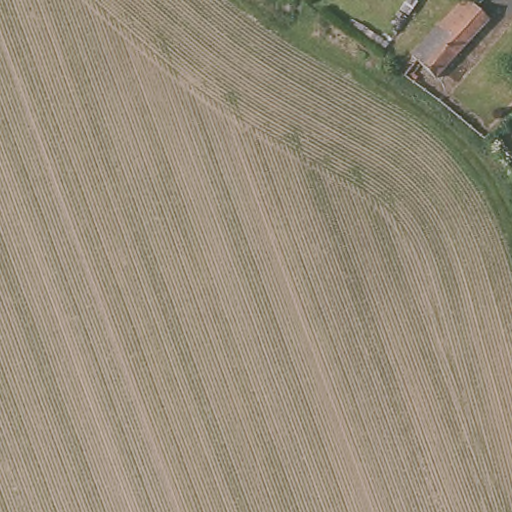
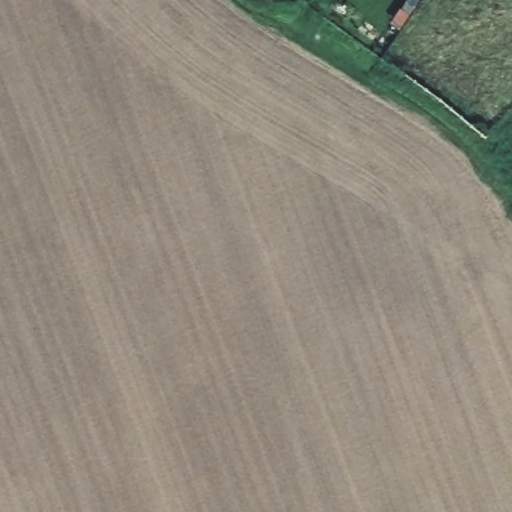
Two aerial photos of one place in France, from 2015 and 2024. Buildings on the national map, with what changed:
demolished [(488,26),(444,73),(435,64),(422,78),(414,69),(427,56),(423,51),(466,6),(488,26)]

